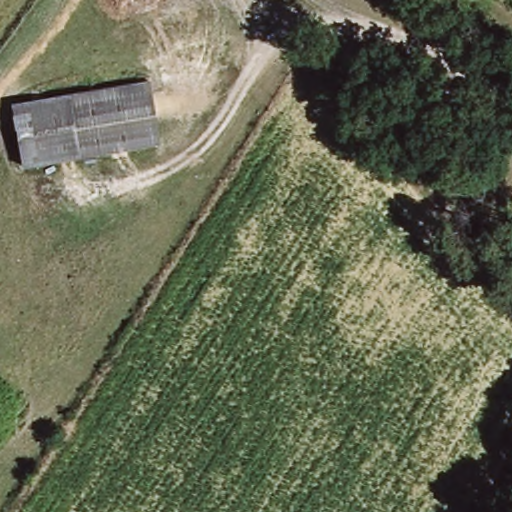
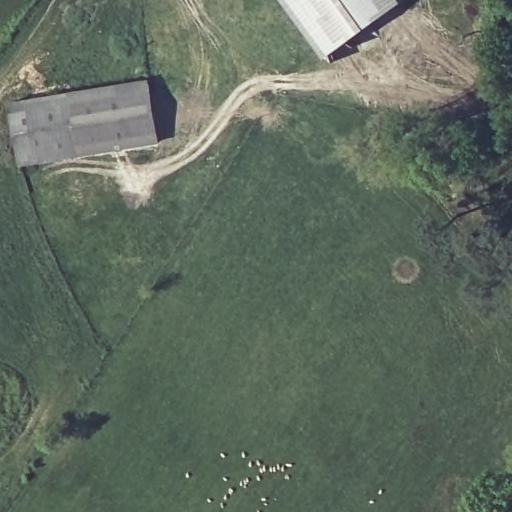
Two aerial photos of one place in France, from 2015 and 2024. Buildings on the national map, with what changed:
new [(326,58),(283,0),(402,0),(404,2),(326,58)]
unchanged [(148,77),(159,130),(56,151),(45,100),(148,77)]
unchanged [(4,130),(0,110),(22,105),(45,100),(56,151),(10,161),(4,130)]

